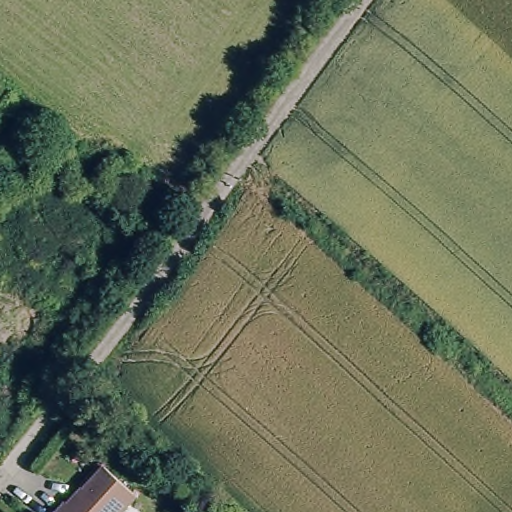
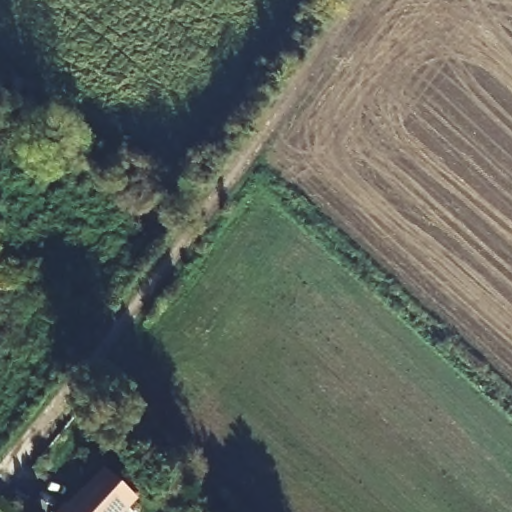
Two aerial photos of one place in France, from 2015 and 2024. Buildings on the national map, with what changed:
unchanged [(122,512),(59,512),(58,512),(67,502),(72,507),(108,470),(137,497),(122,512)]

